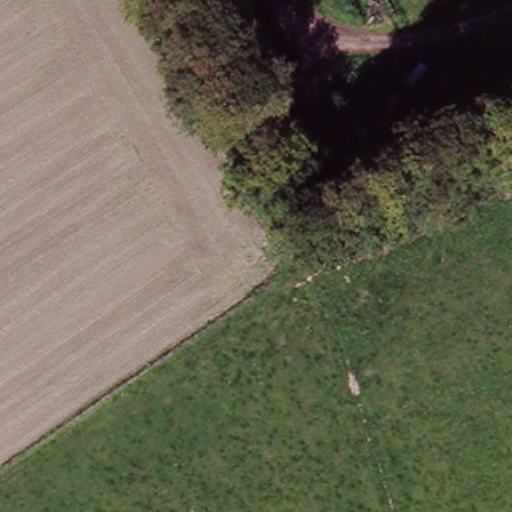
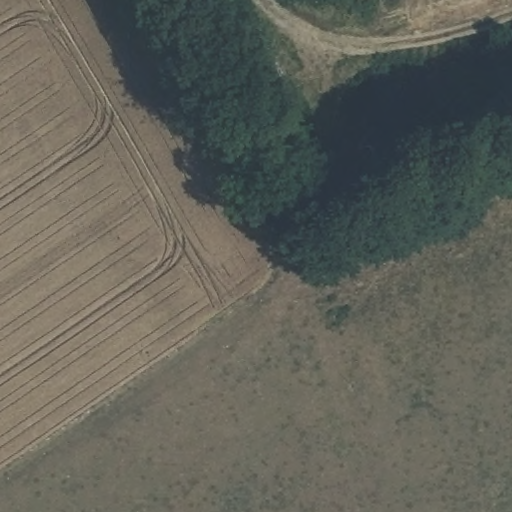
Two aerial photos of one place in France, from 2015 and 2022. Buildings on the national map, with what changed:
unchanged [(277,117),(255,129),(216,61),(257,43),(292,110),(277,117)]
unchanged [(312,182),(290,194),(255,129),(277,117),(312,182)]

